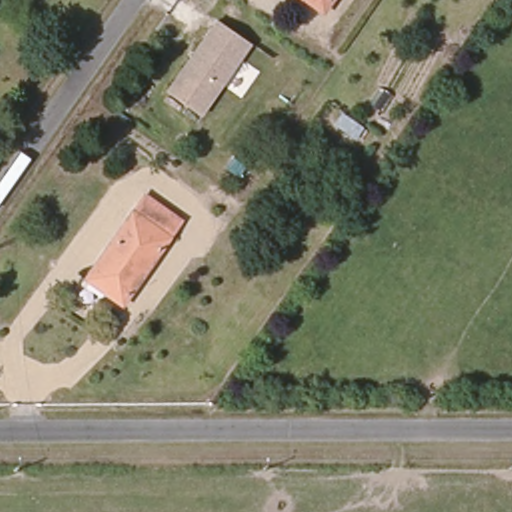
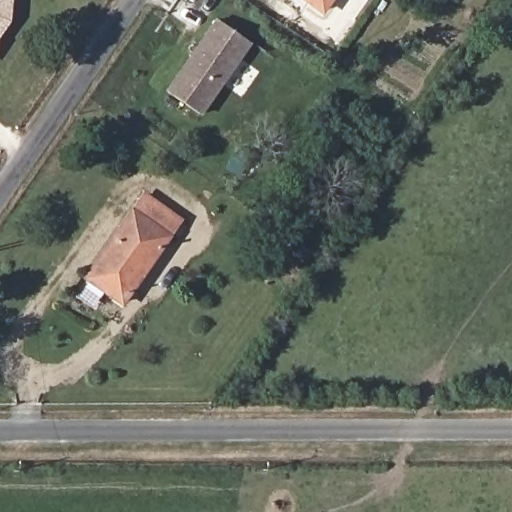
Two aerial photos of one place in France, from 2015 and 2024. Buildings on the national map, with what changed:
new [(10,0),(7,22),(0,33),(0,0),(10,0)]
unchanged [(313,0),(329,0),(324,7),(313,0)]
unchanged [(222,22),(254,45),(205,116),(173,92),(222,22)]
unchanged [(97,258),(140,199),(177,225),(130,292),(114,280),(91,265),(97,258)]

